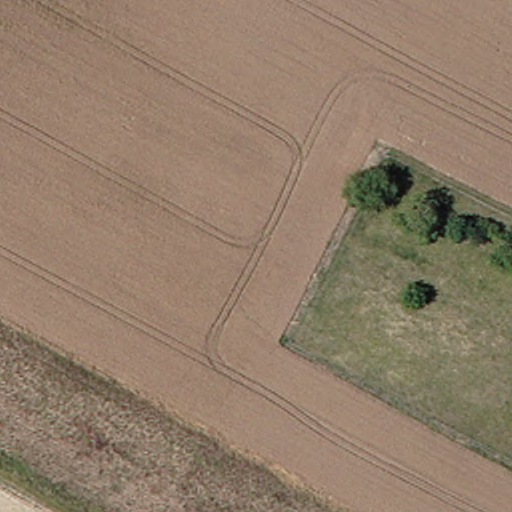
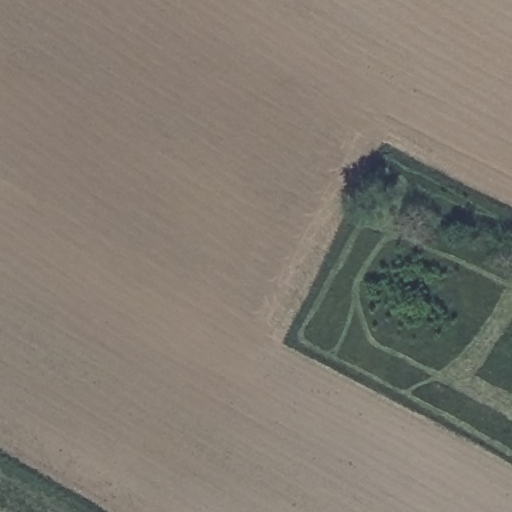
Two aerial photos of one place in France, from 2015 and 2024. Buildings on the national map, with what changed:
[]

